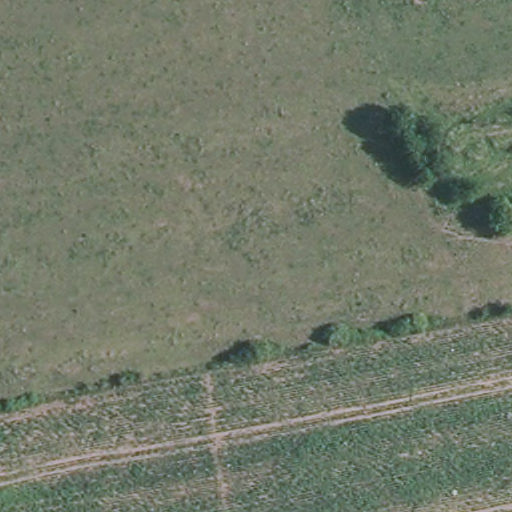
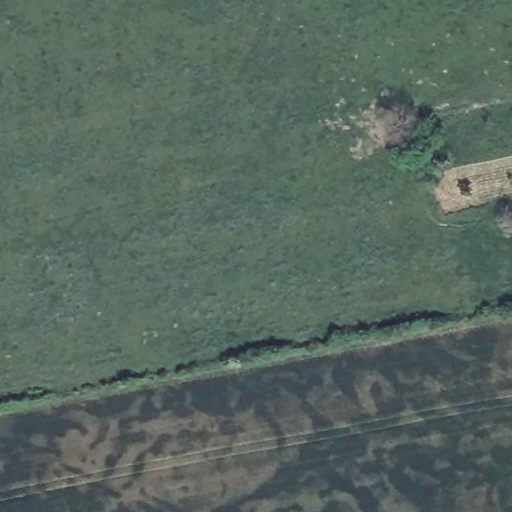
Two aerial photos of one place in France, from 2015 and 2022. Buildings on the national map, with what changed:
[]

